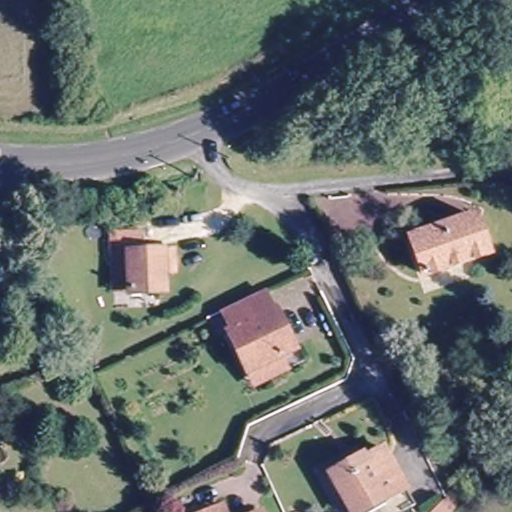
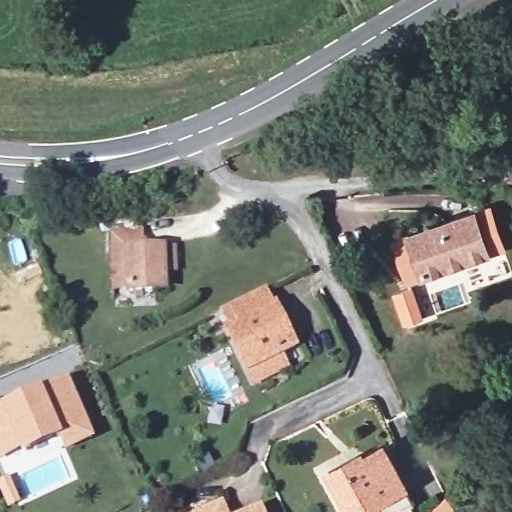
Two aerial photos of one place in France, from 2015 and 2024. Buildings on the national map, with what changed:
unchanged [(406,237),(473,214),(487,253),(420,276),(406,237)]
unchanged [(111,282),(112,233),(172,235),(171,273),(161,273),(161,294),(136,293),(111,292),(111,282)]
unchanged [(250,387),(244,373),(226,330),(230,328),(222,307),(263,289),(272,308),(278,305),(296,348),(280,356),(286,371),(250,387)]
new [(94,438),(66,451),(61,440),(24,458),(20,452),(0,462),(0,409),(5,407),(43,389),(70,378),(94,438)]
unchanged [(405,493),(364,512),(348,512),(330,472),(362,457),(365,463),(387,452),(405,493)]

